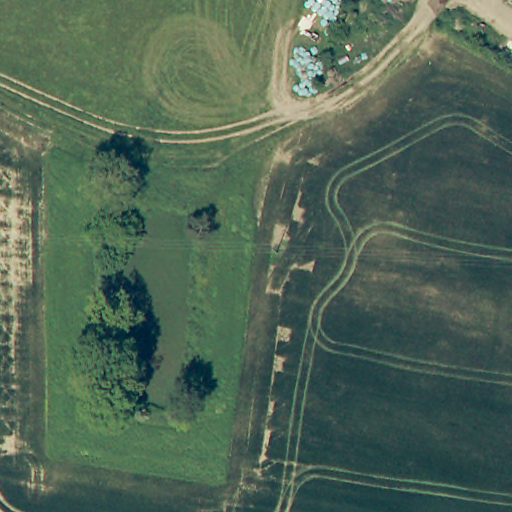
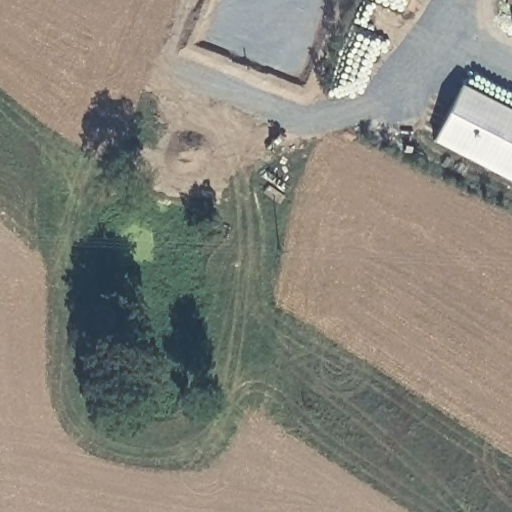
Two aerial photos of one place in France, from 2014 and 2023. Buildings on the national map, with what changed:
new [(431,144),(459,86),(512,112),(512,185),(431,144)]

